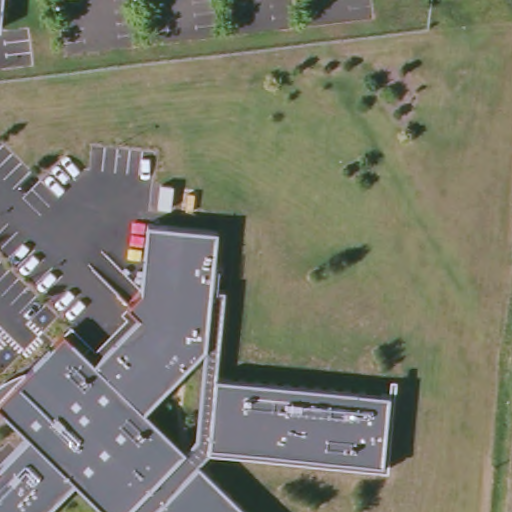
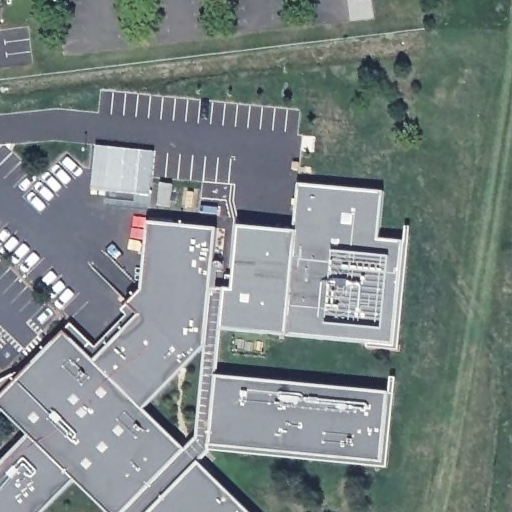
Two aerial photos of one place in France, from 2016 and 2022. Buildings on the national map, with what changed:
unchanged [(1,28),(0,28),(0,0),(3,0),(1,28)]
new [(238,225),(295,231),(299,184),(384,191),(379,239),(402,240),(393,344),(287,334),(222,329),(225,292),(232,293),(238,225)]
unchanged [(212,451),(201,463),(252,512),(109,512),(78,481),(47,512),(0,512),(0,469),(30,437),(0,409),(0,388),(26,372),(72,324),(94,343),(85,349),(98,361),(142,315),(130,303),(144,289),(151,224),(221,230),(217,291),(225,292),(219,377),(390,395),(384,467),(212,451)]

